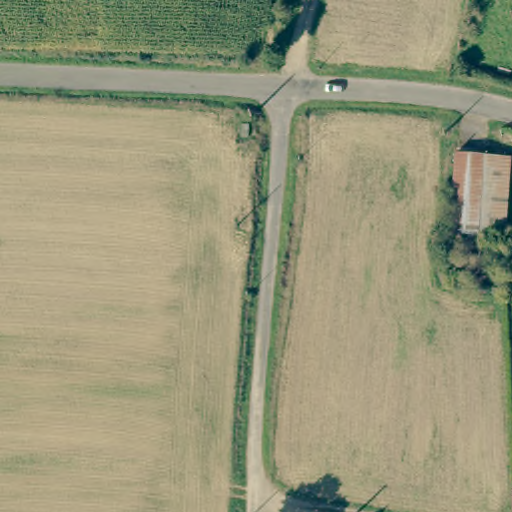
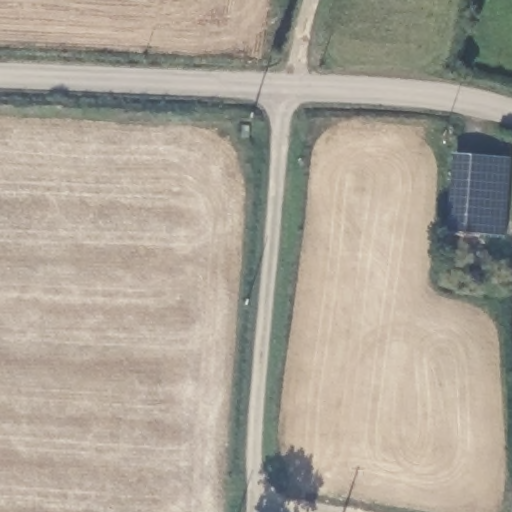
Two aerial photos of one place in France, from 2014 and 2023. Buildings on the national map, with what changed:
unchanged [(501,239),(449,235),(453,156),(506,161),(501,239)]

